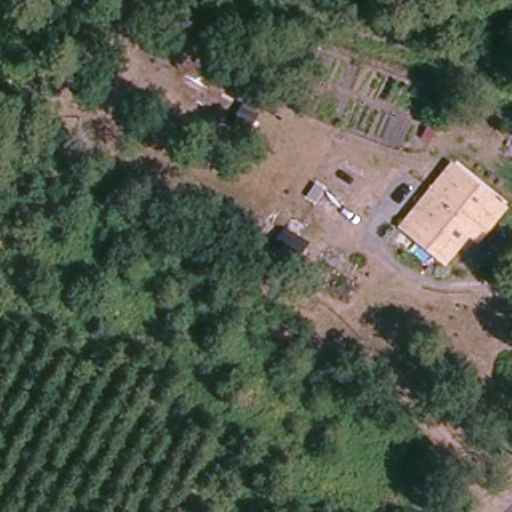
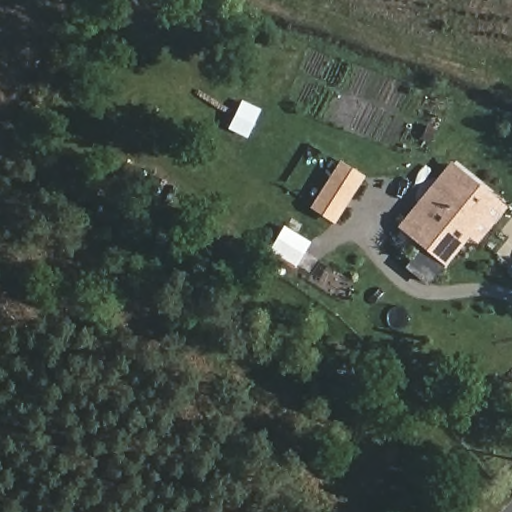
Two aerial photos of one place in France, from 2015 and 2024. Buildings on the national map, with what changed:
new [(340,160),(366,176),(335,224),(310,207),(340,160)]
unchanged [(501,202),(452,263),(409,228),(427,207),(448,184),(461,170),(501,202)]
unchanged [(512,449),(512,452),(499,465),(483,451),(497,437),(512,449)]
unchanged [(441,462),(427,483),(404,467),(427,448),(441,462)]

